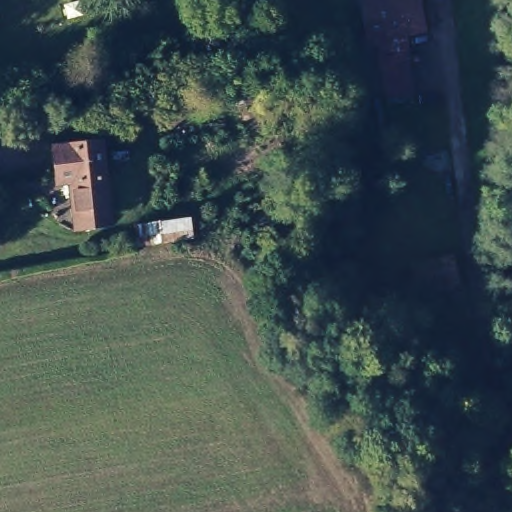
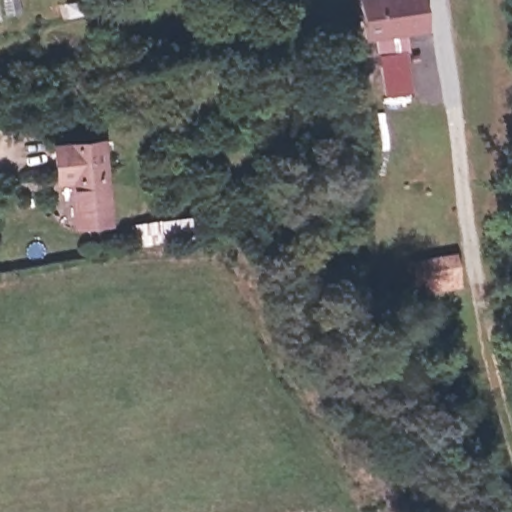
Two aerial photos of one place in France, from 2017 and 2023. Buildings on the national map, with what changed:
unchanged [(361,0),(418,0),(423,29),(367,36),(365,28),(361,0)]
unchanged [(102,136),(111,232),(62,236),(61,178),(47,179),(46,129),(102,136)]
unchanged [(457,242),(466,284),(421,292),(417,256),(457,242)]

